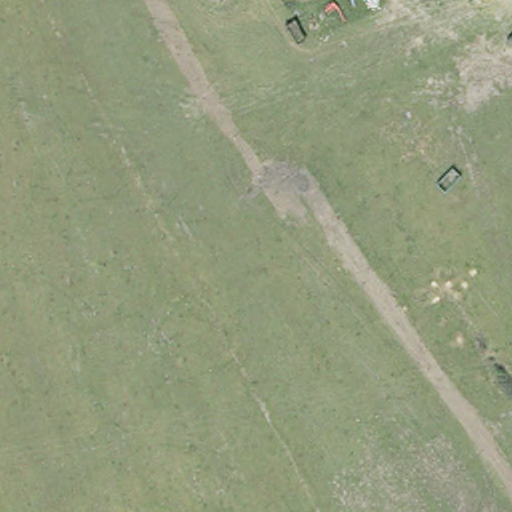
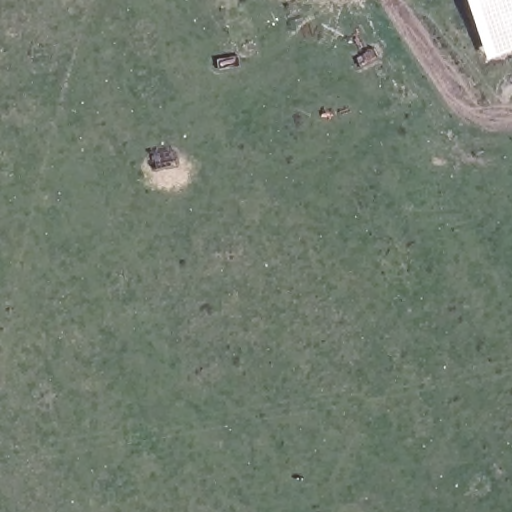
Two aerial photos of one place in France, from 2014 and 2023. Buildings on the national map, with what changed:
new [(491,58),(468,0),(512,0),(512,50),(491,58)]

